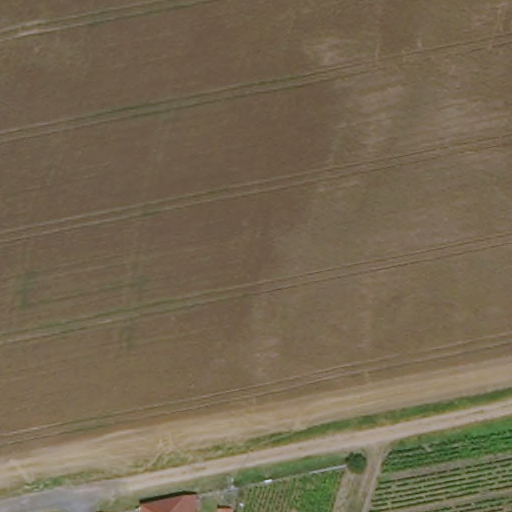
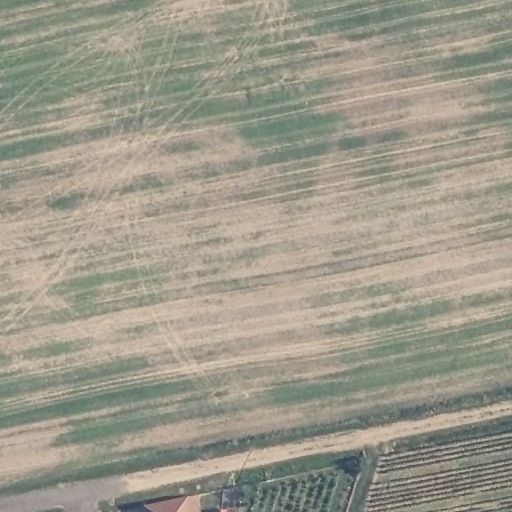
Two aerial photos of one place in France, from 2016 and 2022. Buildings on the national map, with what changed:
unchanged [(184,500),(195,498),(197,512),(143,512),(143,509),(184,500)]

